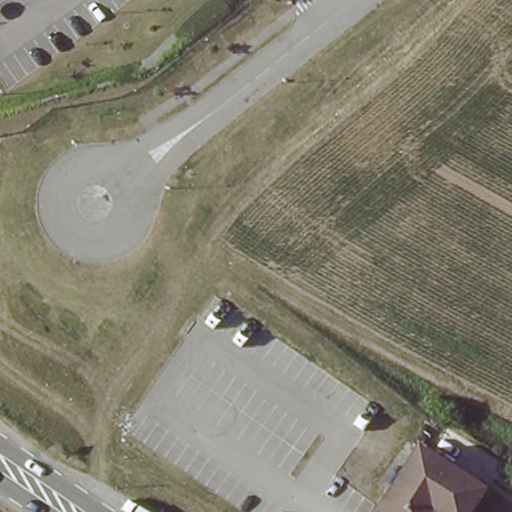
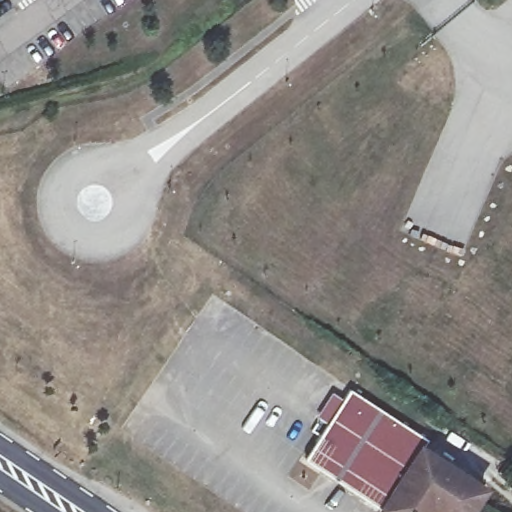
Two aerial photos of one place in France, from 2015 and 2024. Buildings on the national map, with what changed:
new [(417,442),(378,503),(305,458),(329,423),(316,416),(332,390),(345,398),(350,388),(429,438),(423,446),(417,442)]
unchanged [(378,503),(417,442),(423,446),(481,482),(462,512),(447,512),(430,501),(422,512),(392,512),(378,503)]

